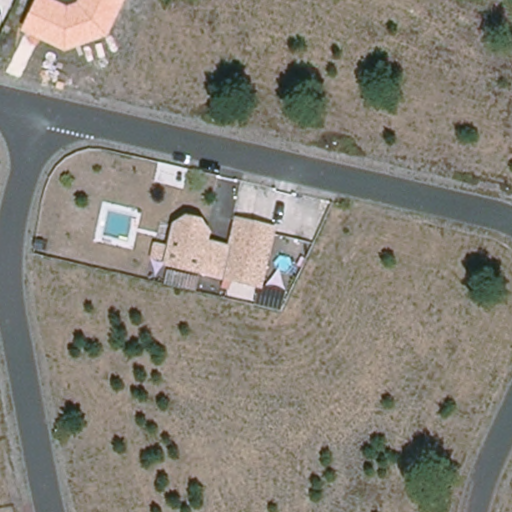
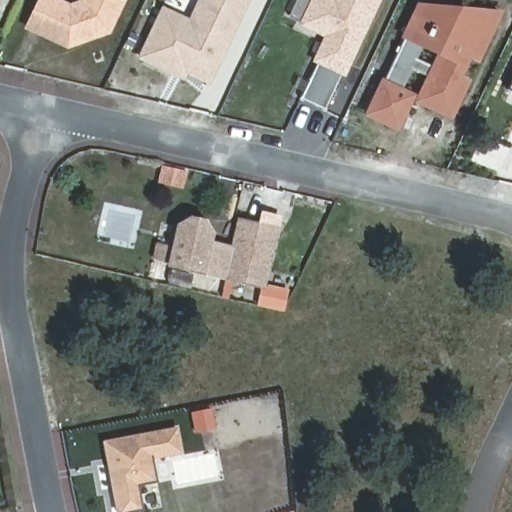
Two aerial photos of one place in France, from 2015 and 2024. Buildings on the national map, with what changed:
unchanged [(66,49),(21,27),(36,0),(62,0),(68,3),(78,0),(125,0),(109,34),(66,49)]
new [(135,58),(150,26),(182,41),(202,0),(242,0),(240,4),(202,83),(180,71),(177,78),(166,73),(135,58)]
new [(195,0),(202,0),(182,41),(150,26),(158,10),(185,23),(195,0)]
new [(297,25),(283,18),(291,0),(373,0),(337,75),(310,61),(322,38),(297,26),(297,25)]
new [(473,12),(491,21),(473,59),(464,55),(453,79),(461,83),(445,116),(413,101),(424,78),(407,69),(396,91),(406,96),(391,128),(363,114),(405,28),(415,6),(432,15),(464,30),(473,12)]
new [(312,63),(337,75),(331,89),(319,113),(293,101),(305,76),(312,63)]
new [(501,93),(512,71),(512,98),(501,93)]
unchanged [(176,230),(188,222),(200,225),(208,237),(206,247),(230,253),(237,225),(273,233),(259,291),(166,268),(176,230)]
new [(207,411),(210,430),(191,433),(188,415),(207,411)]
new [(172,431),(175,453),(149,458),(153,484),(135,487),(139,512),(114,512),(101,444),(172,431)]

